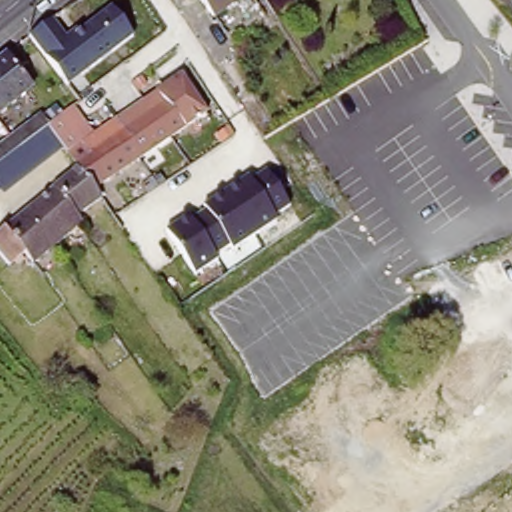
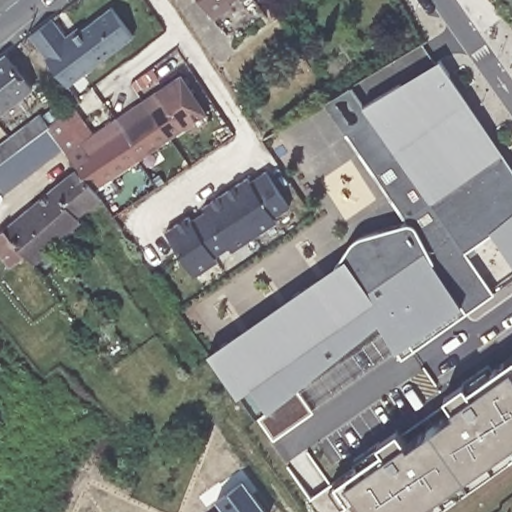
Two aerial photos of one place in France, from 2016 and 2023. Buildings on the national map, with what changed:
unchanged [(212,15),(203,0),(234,0),(212,15)]
unchanged [(50,17),(63,40),(111,7),(134,41),(65,88),(26,37),(50,17)]
unchanged [(32,90),(0,115),(0,59),(6,53),(32,90)]
new [(337,264),(349,243),(356,236),(406,223),(345,135),(369,117),(361,106),(439,59),(502,153),(512,168),(512,263),(492,234),(466,252),(495,293),(403,357),(397,349),(378,321),(296,389),(313,412),(273,441),(257,418),(266,409),(251,387),(237,396),(207,352),(337,264)]
unchanged [(76,170),(62,150),(46,129),(73,110),(99,148),(161,106),(156,97),(180,81),(204,118),(94,194),(76,170)]
unchanged [(0,196),(0,195),(0,143),(6,138),(16,151),(46,129),(62,150),(0,196)]
unchanged [(77,220),(82,228),(32,267),(23,256),(9,268),(0,256),(0,235),(76,170),(94,194),(100,202),(77,220)]
unchanged [(290,203),(275,214),(279,218),(196,274),(166,234),(201,208),(250,175),(254,180),(266,172),(290,203)]
new [(429,512),(353,512),(344,500),(347,498),(335,481),(382,448),(377,442),(399,427),(405,439),(408,443),(454,410),(451,406),(444,396),(465,380),(470,387),(512,355),(512,454),(429,512)]

